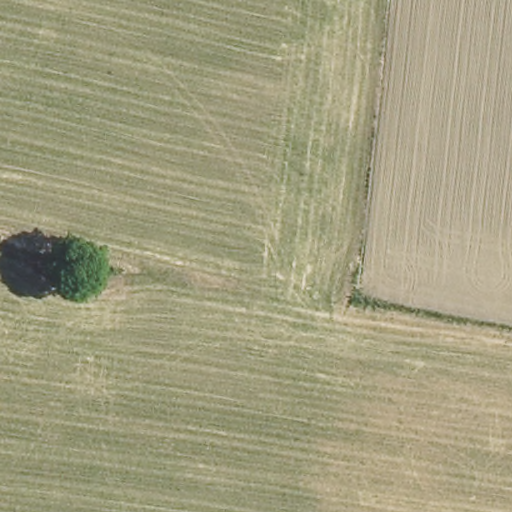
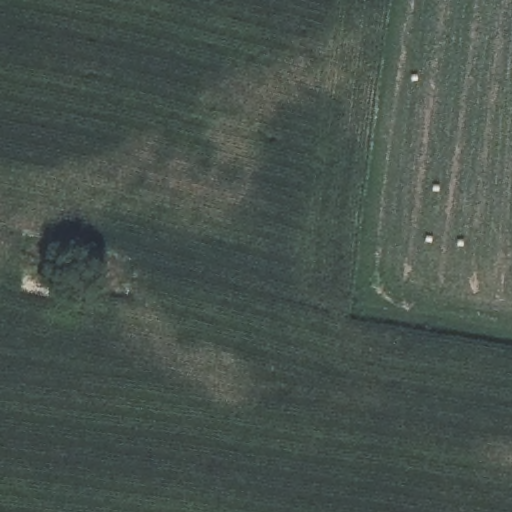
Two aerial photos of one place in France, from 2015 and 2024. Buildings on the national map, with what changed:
[]

